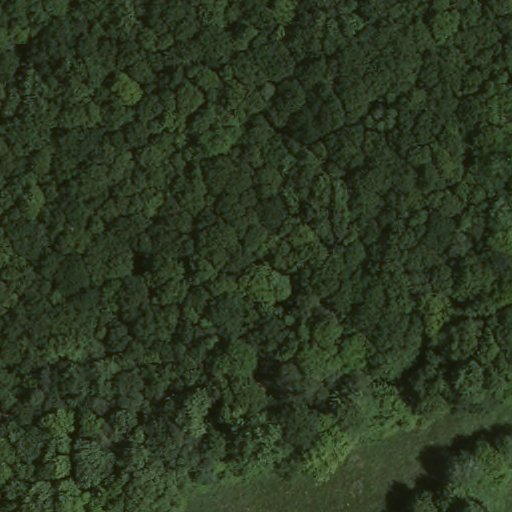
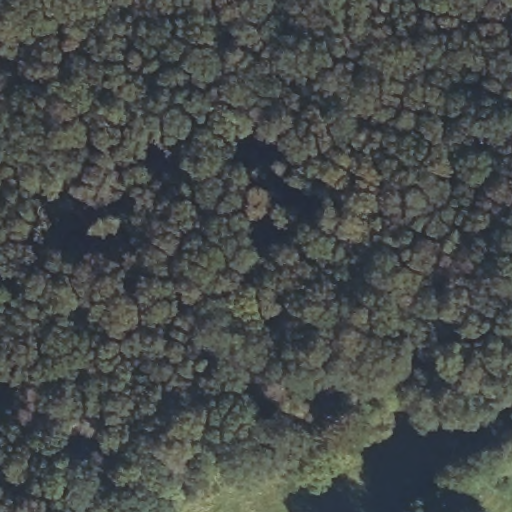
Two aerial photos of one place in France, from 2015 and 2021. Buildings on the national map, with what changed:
[]

